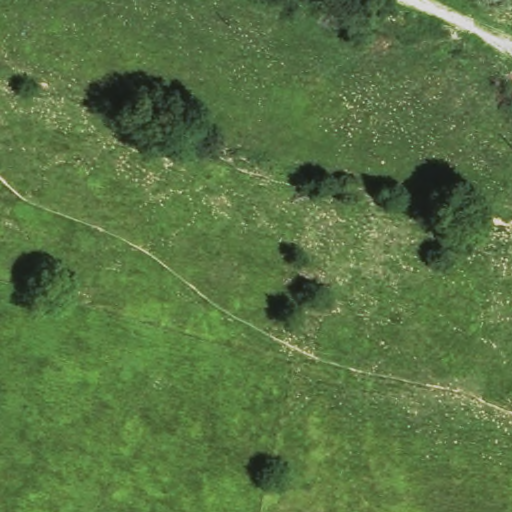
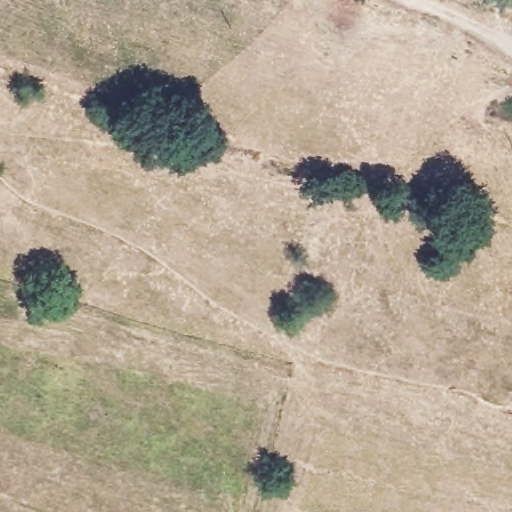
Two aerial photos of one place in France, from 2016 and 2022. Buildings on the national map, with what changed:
[]

